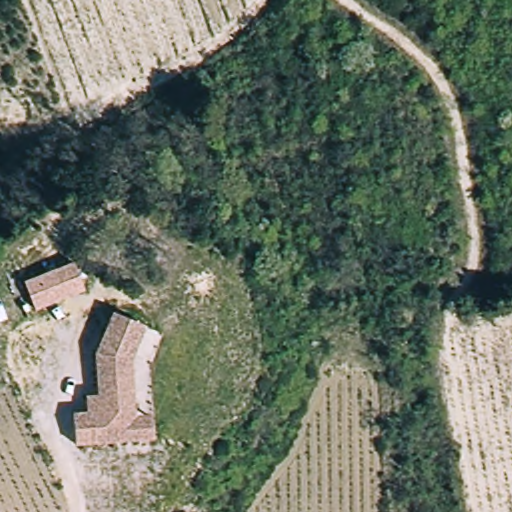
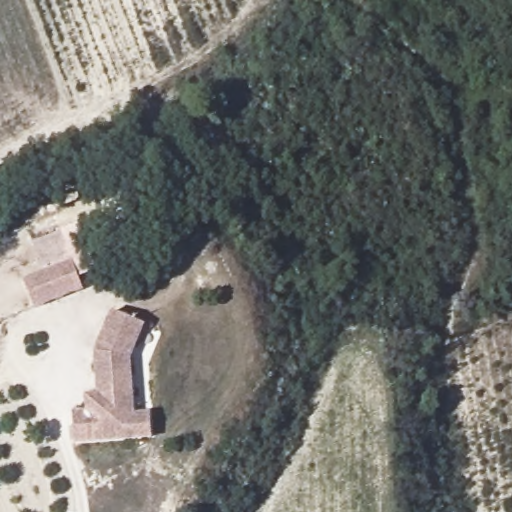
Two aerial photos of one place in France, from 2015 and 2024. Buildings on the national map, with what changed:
unchanged [(73,262),(81,288),(34,310),(23,281),(73,262)]
unchanged [(150,440),(125,441),(75,445),(73,416),(88,415),(86,398),(99,397),(96,354),(113,313),(143,326),(129,361),(133,416),(148,415),(150,440)]

